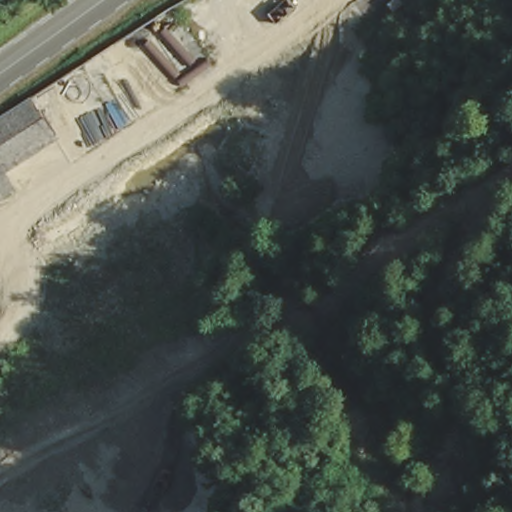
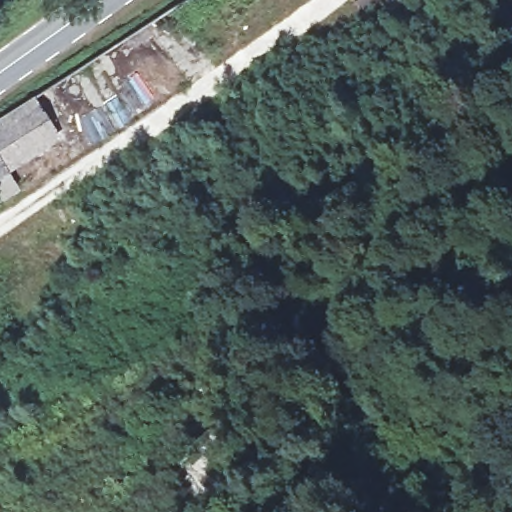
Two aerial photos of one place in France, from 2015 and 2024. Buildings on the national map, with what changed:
unchanged [(21,185),(5,194),(0,185),(0,125),(36,101),(56,132),(8,163),(21,185)]

